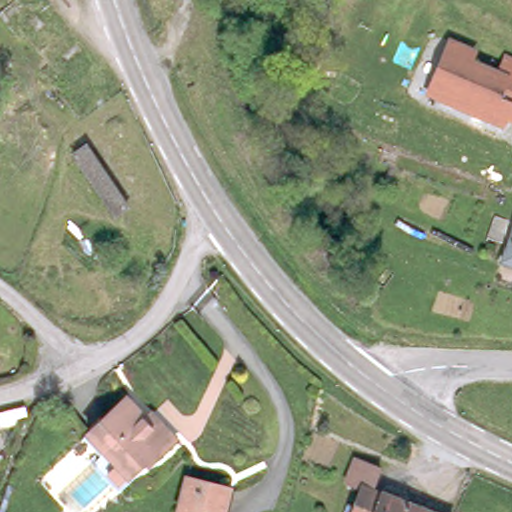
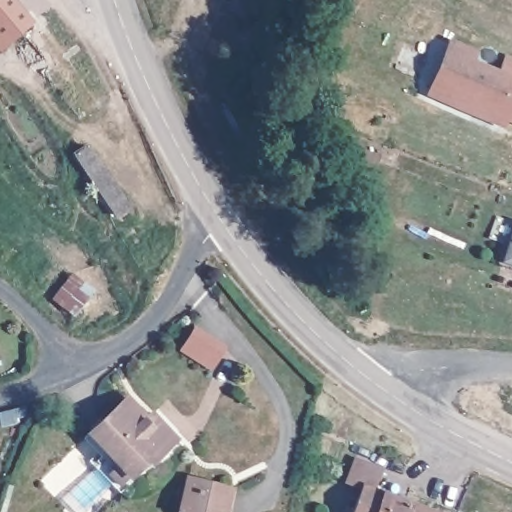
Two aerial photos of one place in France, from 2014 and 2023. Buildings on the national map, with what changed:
new [(14,0),(33,23),(0,51),(0,0),(14,0)]
unchanged [(443,33),(466,43),(462,52),(492,65),(499,49),(512,55),(512,100),(502,96),(494,114),(436,89),(422,83),(426,74),(443,33)]
unchanged [(127,208),(115,217),(113,215),(112,216),(75,155),(90,148),(127,208)]
unchanged [(512,226),(512,266),(499,261),(512,226)]
demolished [(126,263),(148,272),(144,295),(115,287),(126,263)]
new [(193,327),(226,348),(212,372),(178,352),(193,327)]
unchanged [(134,471),(132,466),(102,482),(95,467),(104,461),(85,423),(132,398),(143,420),(152,416),(158,430),(169,451),(134,471)]
unchanged [(347,511),(358,480),(342,473),(352,452),(367,459),(377,462),(370,481),(445,512),(347,512),(347,511)]
unchanged [(221,512),(181,512),(173,510),(183,480),(226,490),(221,512)]

